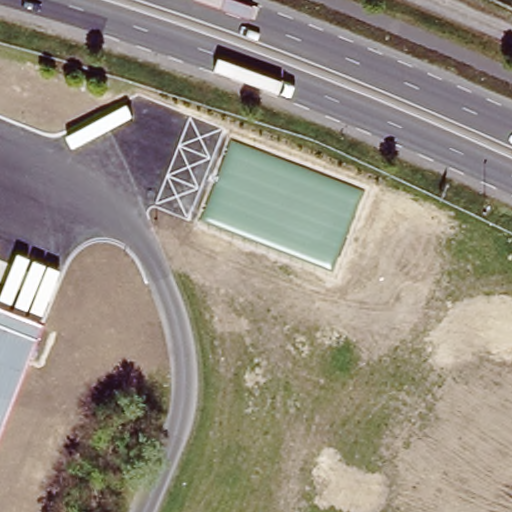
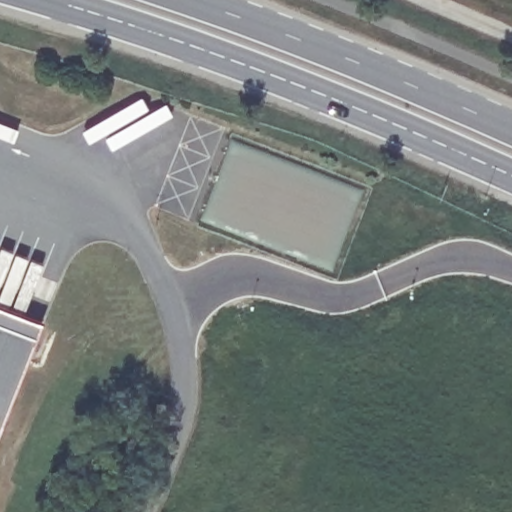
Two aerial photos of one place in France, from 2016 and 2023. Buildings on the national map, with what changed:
unchanged [(0,431),(0,304),(44,322),(0,431)]

